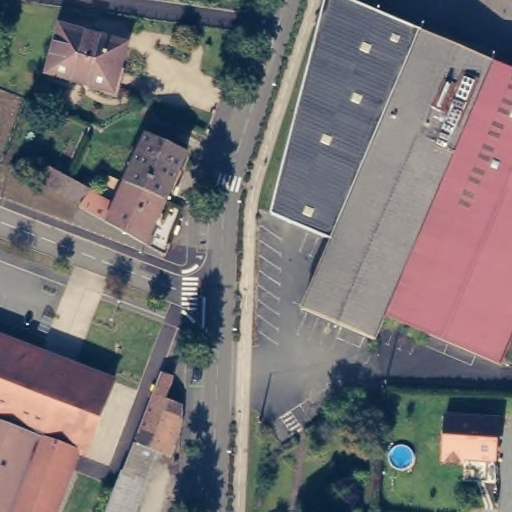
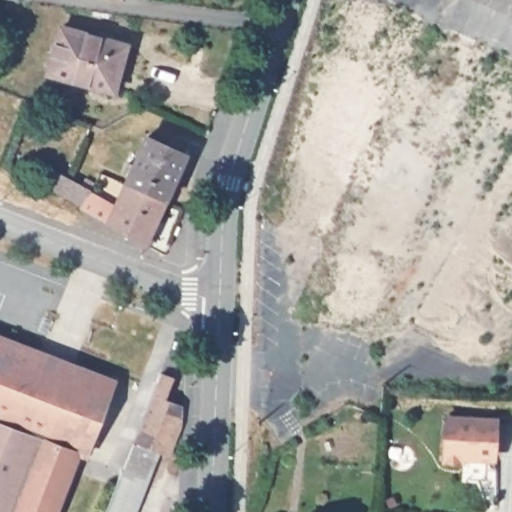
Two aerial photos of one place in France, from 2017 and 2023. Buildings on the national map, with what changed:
demolished [(512,67),(512,113),(402,319),(386,312),(375,336),(302,304),(332,235),(273,211),(270,210),(278,175),(312,43),(322,0),(356,0),(420,28),(493,59),(512,67)]
unchanged [(87,29),(96,31),(94,38),(120,46),(110,90),(42,74),(55,27),(85,36),(87,29)]
demolished [(512,113),(512,186),(420,327),(402,319),(512,113)]
unchanged [(130,184),(135,173),(130,171),(133,163),(138,165),(152,136),(191,155),(170,201),(130,184)]
unchanged [(92,215),(80,208),(82,204),(62,194),(40,183),(48,168),(70,180),(90,191),(100,198),(92,215)]
unchanged [(112,224),(130,184),(170,201),(150,245),(112,224)]
demolished [(501,361),(420,327),(512,186),(512,335),(501,361)]
unchanged [(0,334),(116,379),(60,512),(0,512),(0,334)]
unchanged [(173,379),(164,401),(182,408),(181,417),(165,456),(157,453),(133,443),(160,374),(173,379)]
unchanged [(445,417),(498,419),(495,461),(440,461),(445,417)]
unchanged [(136,512),(106,512),(123,470),(133,443),(157,453),(136,512)]

